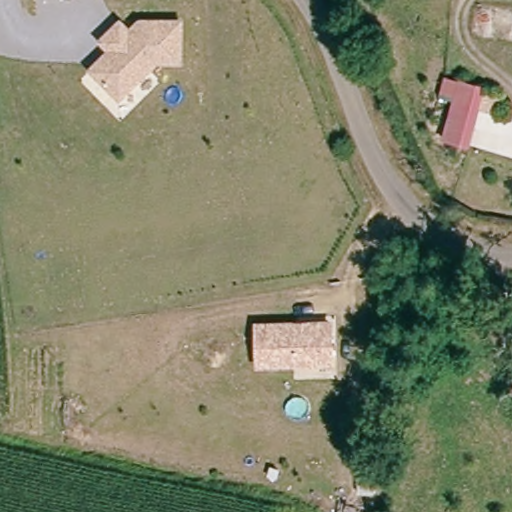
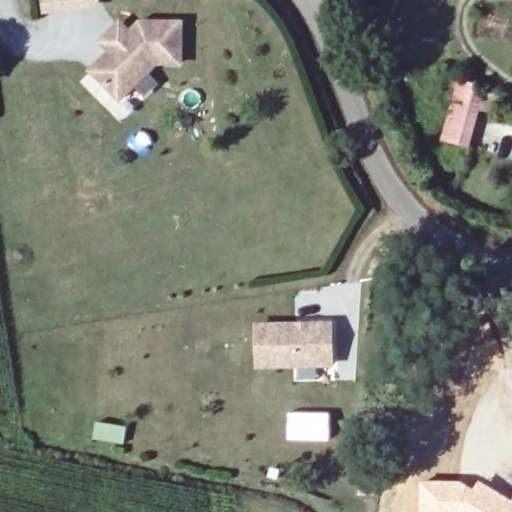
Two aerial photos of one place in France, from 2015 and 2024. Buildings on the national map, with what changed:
unchanged [(101,1),(49,5),(48,0),(100,0),(101,1)]
unchanged [(182,63),(158,62),(120,97),(92,67),(104,57),(111,57),(116,52),(104,39),(124,21),(132,31),(143,21),(184,23),(182,63)]
unchanged [(476,149),(451,142),(462,102),(466,87),(483,92),(491,94),(485,115),(476,149)]
unchanged [(330,360),(257,361),(256,322),(328,320),(330,360)]
unchanged [(365,487),(350,486),(351,471),(367,472),(365,487)]
new [(472,488),(478,480),(511,499),(512,497),(512,512),(421,512),(421,481),(461,481),(472,488)]

